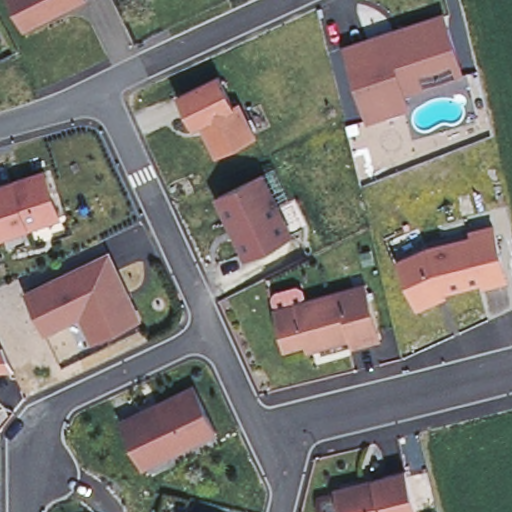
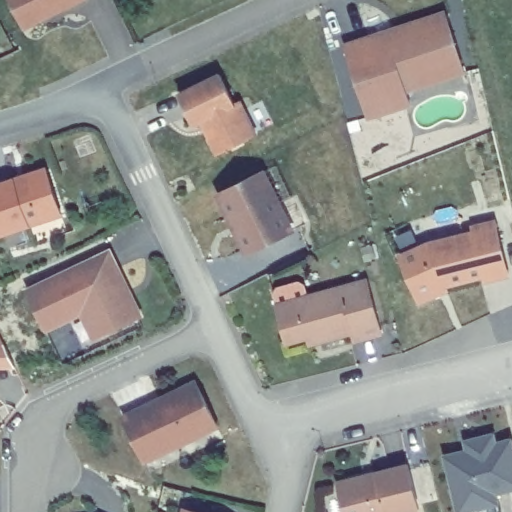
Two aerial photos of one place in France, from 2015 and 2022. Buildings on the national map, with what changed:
unchanged [(12,0),(77,0),(24,29),(12,0)]
unchanged [(410,101),(367,113),(345,40),(373,32),(375,35),(430,19),(450,21),(463,68),(461,69),(405,86),(410,101)]
unchanged [(218,75),(233,104),(238,102),(255,135),(216,154),(200,122),(192,125),(177,94),(218,75)]
unchanged [(48,174),(61,215),(33,224),(0,235),(0,185),(15,180),(47,170),(48,174)]
unchanged [(263,172),(291,230),(246,252),(218,194),(263,172)]
unchanged [(420,240),(469,229),(469,221),(495,214),(510,275),(485,284),(483,277),(450,285),(451,289),(418,305),(397,253),(420,240)]
unchanged [(81,308),(46,325),(26,285),(109,246),(140,312),(103,329),(93,334),(81,308)]
unchanged [(366,281),(380,334),(353,341),(352,333),(325,340),(315,295),(366,281)]
unchanged [(306,337),(285,343),(275,305),(315,295),(325,340),(319,342),(308,344),(306,337)]
unchanged [(145,402),(145,404),(182,388),(181,385),(199,377),(220,423),(183,439),(181,435),(145,452),(127,410),(145,402)]
new [(446,460),(445,456),(467,450),(465,441),(493,434),(495,444),(510,440),(512,448),(512,489),(495,493),(497,503),(500,512),(458,512),(446,460)]
unchanged [(366,475),(375,473),(375,468),(407,461),(417,504),(387,512),(369,512),(360,472),(366,475)]
unchanged [(337,483),(341,476),(360,472),(369,512),(345,512),(337,483)]
unchanged [(184,511),(188,512),(184,512),(184,511)]

